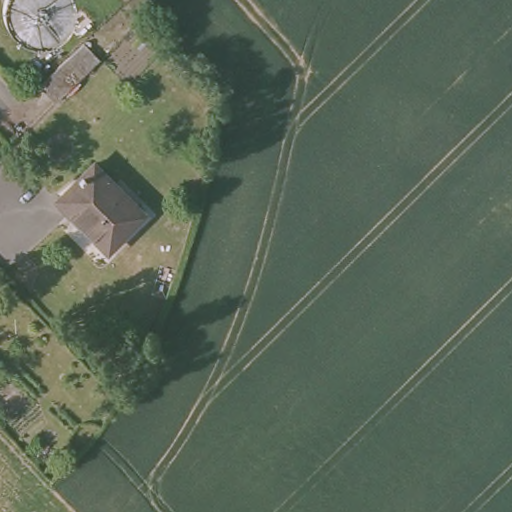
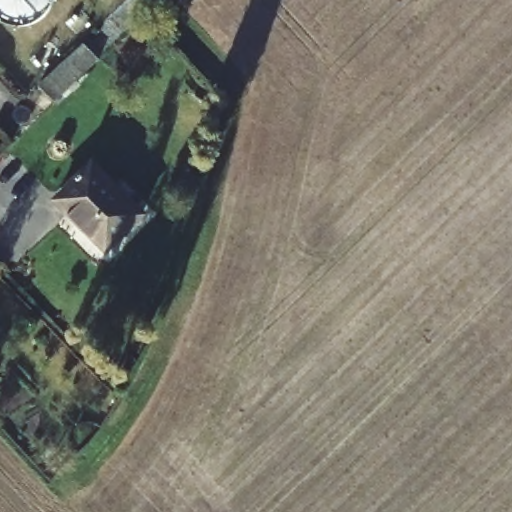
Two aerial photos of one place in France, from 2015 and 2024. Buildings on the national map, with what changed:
unchanged [(77,83),(61,98),(40,77),(92,31),(108,52),(77,83)]
unchanged [(142,217),(103,254),(52,204),(90,167),(142,217)]

